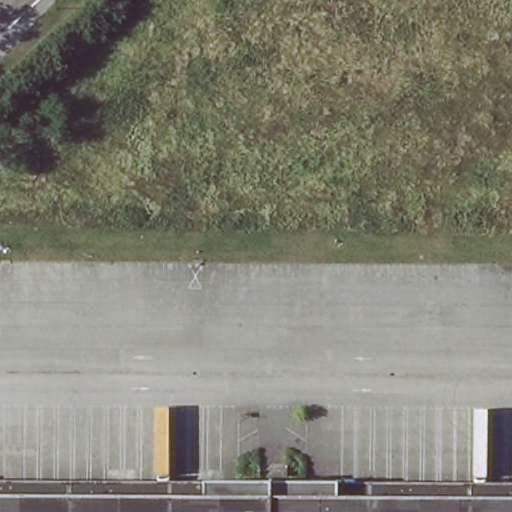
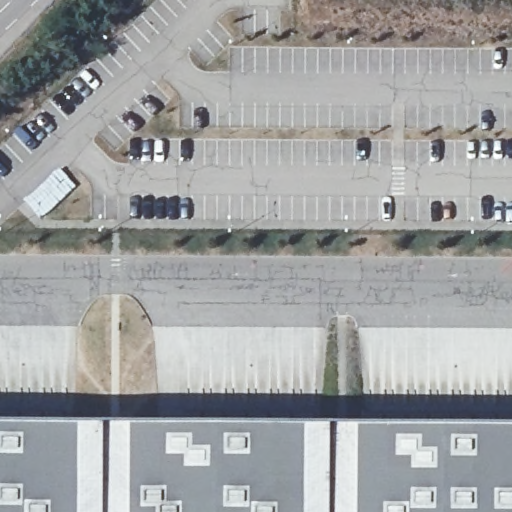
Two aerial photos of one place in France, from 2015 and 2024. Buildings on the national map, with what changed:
new [(512,432),(512,512),(0,512),(0,431),(512,432)]
demolished [(512,497),(512,512),(0,512),(0,494),(512,497)]

